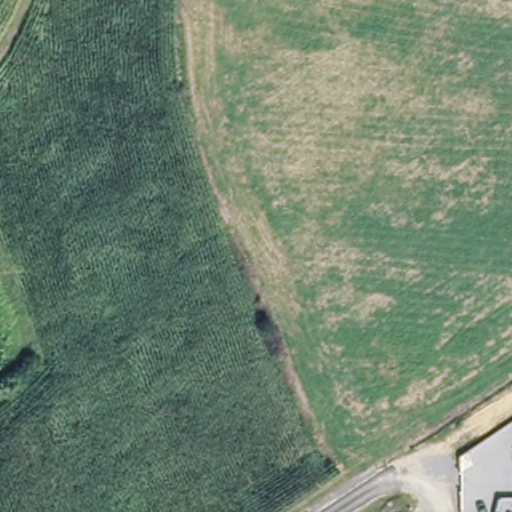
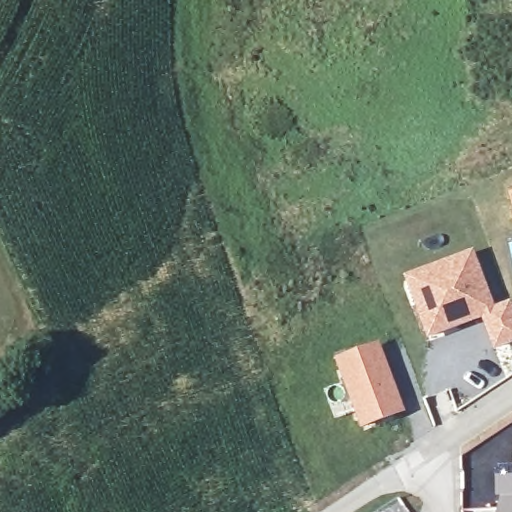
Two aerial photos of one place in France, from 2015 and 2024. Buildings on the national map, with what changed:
new [(512,194),(512,211),(508,195),(512,194)]
new [(473,254),(493,311),(512,305),(512,342),(496,348),(483,316),(428,338),(407,279),(473,254)]
new [(334,359),(379,342),(406,413),(360,431),(334,359)]

